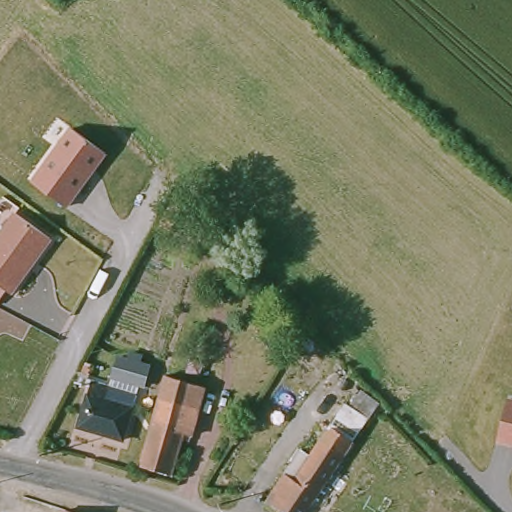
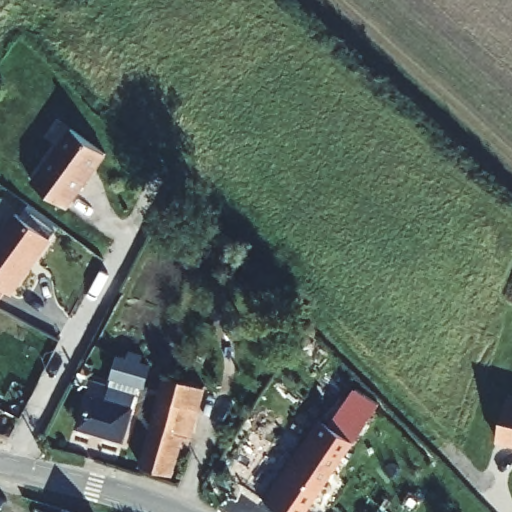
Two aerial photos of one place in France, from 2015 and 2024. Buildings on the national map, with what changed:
unchanged [(105,155),(65,208),(30,181),(71,127),(105,155)]
unchanged [(52,242),(12,295),(6,291),(0,299),(0,226),(2,228),(13,212),(52,242)]
unchanged [(177,219),(170,234),(158,227),(165,212),(177,219)]
unchanged [(111,386),(119,357),(128,360),(130,352),(142,356),(139,363),(150,367),(145,387),(139,386),(124,439),(80,427),(90,387),(77,382),(80,372),(82,373),(84,366),(91,368),(87,380),(111,386)]
unchanged [(183,441),(174,475),(140,467),(160,398),(167,375),(205,386),(200,407),(190,442),(183,441)]
unchanged [(270,502),(307,451),(315,456),(350,402),(359,408),(369,394),(385,406),(375,420),(310,512),(288,512),(285,511),(270,502)]
unchanged [(512,404),(512,448),(492,443),(500,402),(512,404)]
unchanged [(70,505),(92,512),(67,512),(70,505)]

